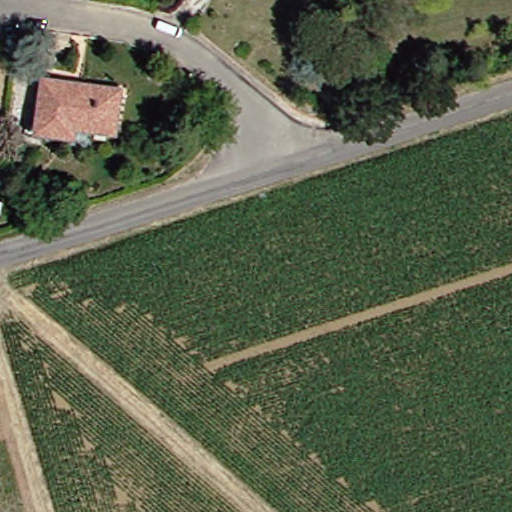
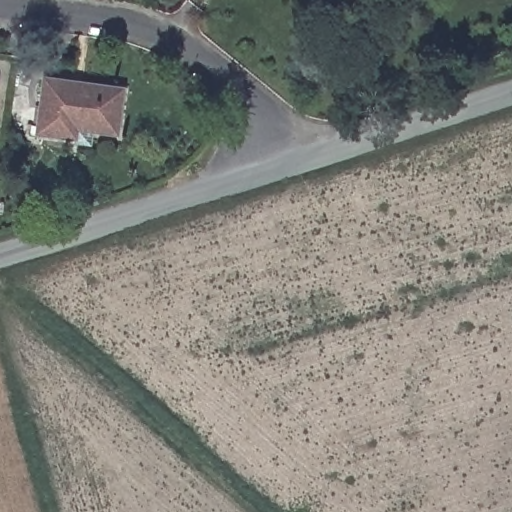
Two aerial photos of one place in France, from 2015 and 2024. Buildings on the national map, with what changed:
unchanged [(119,134),(81,129),(79,139),(39,134),(46,81),(124,92),(119,134)]

